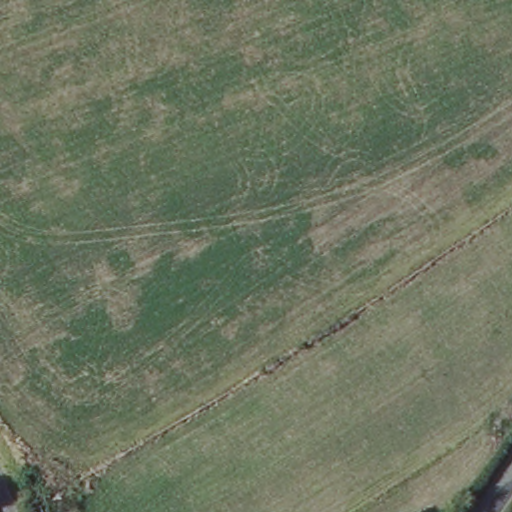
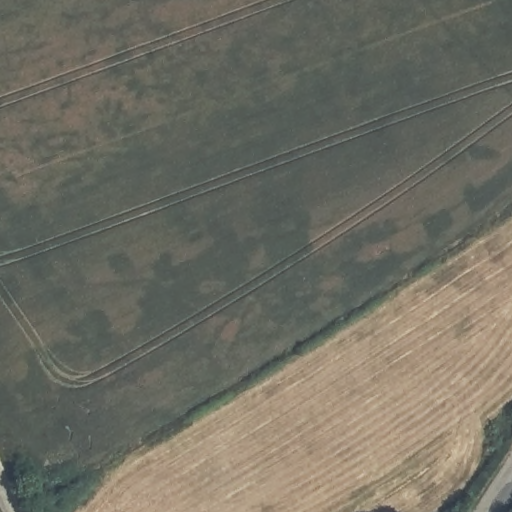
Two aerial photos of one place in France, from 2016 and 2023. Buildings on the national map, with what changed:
[]

